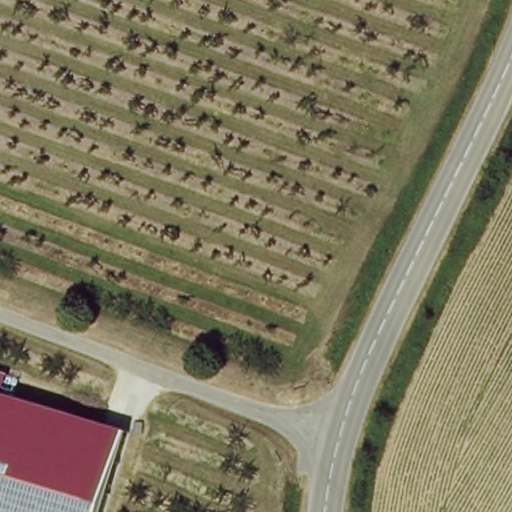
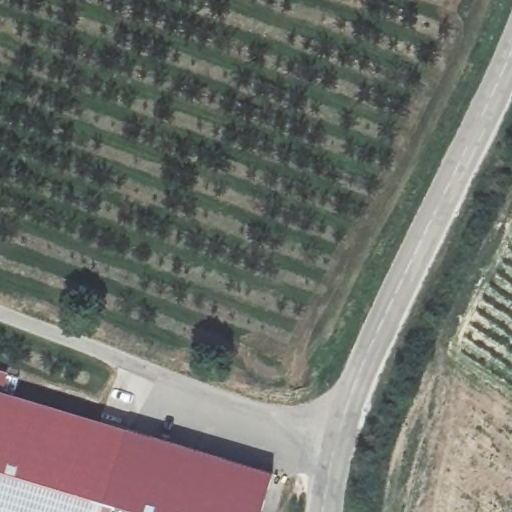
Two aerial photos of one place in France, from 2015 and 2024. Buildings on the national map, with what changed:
unchanged [(2,394),(130,433),(106,512),(0,512),(0,374),(8,377),(2,394)]
new [(277,477),(265,512),(106,512),(130,433),(277,477)]

